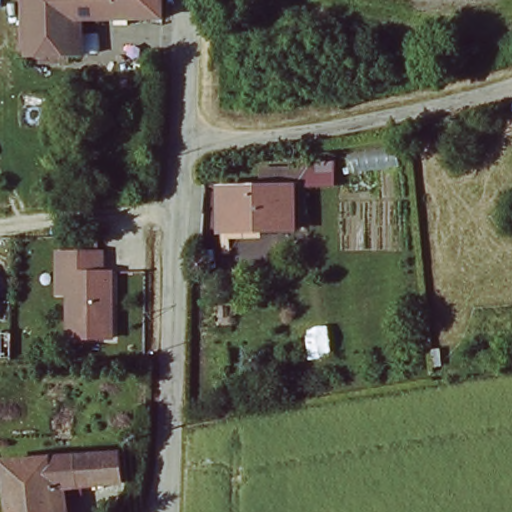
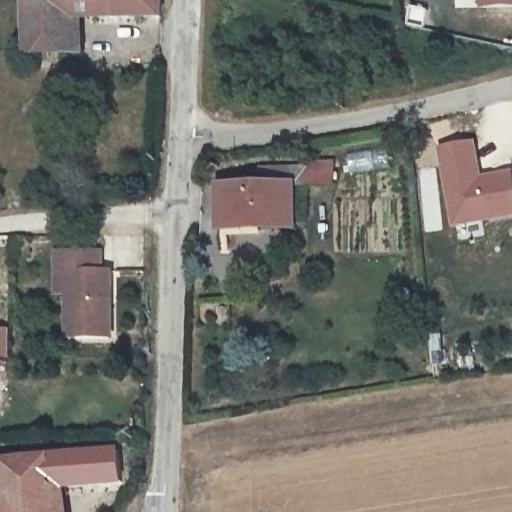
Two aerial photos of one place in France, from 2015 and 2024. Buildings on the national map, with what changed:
unchanged [(30,58),(27,0),(164,0),(165,14),(82,19),(84,53),(30,58)]
new [(480,9),(480,0),(512,0),(512,9),(480,9)]
new [(477,140),(484,174),(512,170),(512,221),(455,230),(438,146),(477,140)]
unchanged [(221,234),(219,197),(258,194),(258,176),(299,172),(300,190),(289,191),(293,228),(221,234)]
unchanged [(100,251),(101,271),(110,271),(111,337),(67,337),(67,272),(55,272),(55,251),(100,251)]
unchanged [(9,357),(0,357),(0,332),(10,332),(9,357)]
unchanged [(121,480),(55,485),(58,512),(7,512),(0,463),(0,456),(119,446),(121,480)]

